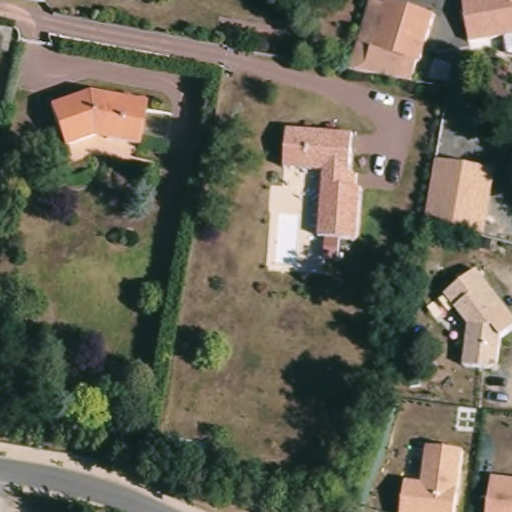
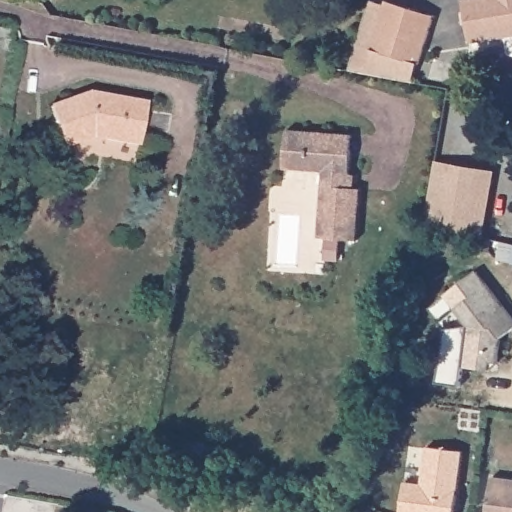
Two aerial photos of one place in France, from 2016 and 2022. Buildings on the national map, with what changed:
unchanged [(417,61),(369,47),(383,0),(387,0),(431,13),(417,61)]
unchanged [(463,0),(512,0),(512,35),(465,38),(463,0)]
unchanged [(92,96),(146,106),(139,150),(96,144),(69,153),(51,114),(92,96)]
unchanged [(285,170),(290,133),(353,139),(348,190),(363,193),(356,243),(315,239),(322,174),(285,170)]
unchanged [(485,235),(423,224),(435,159),(496,170),(485,235)]
unchanged [(499,362),(489,370),(462,368),(467,325),(453,306),(457,304),(447,292),(475,270),(512,316),(512,329),(501,339),(499,362)]
unchanged [(463,449),(456,512),(400,512),(403,481),(421,483),(425,446),(463,449)]
unchanged [(491,476),(512,478),(512,512),(487,512),(491,476)]

